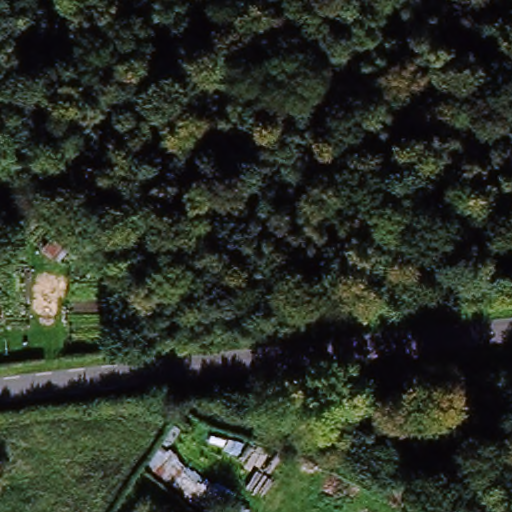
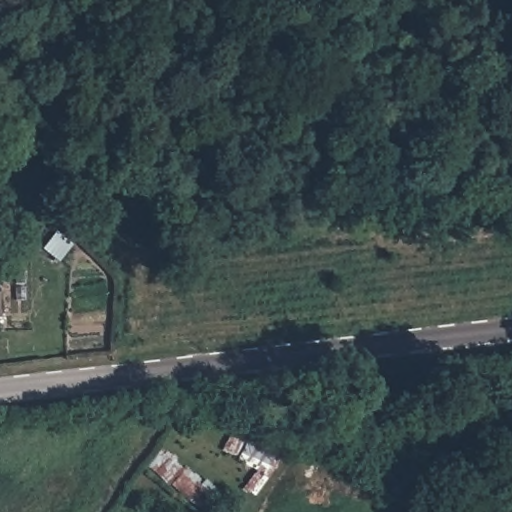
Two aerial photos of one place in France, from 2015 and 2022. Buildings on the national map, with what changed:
unchanged [(241,496),(256,465),(277,474),(260,507),(241,496)]

